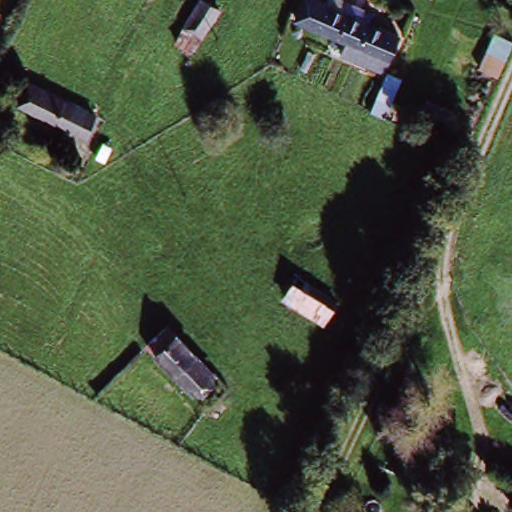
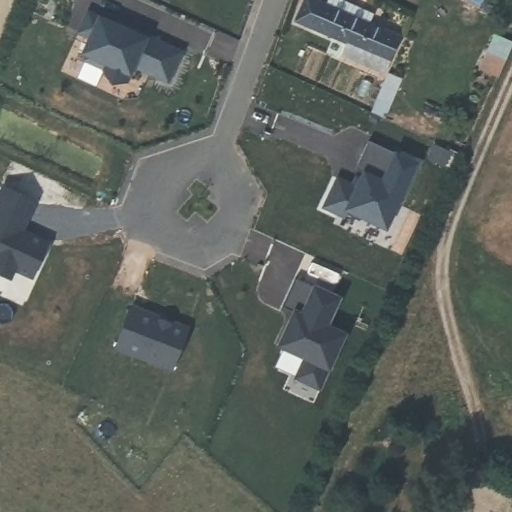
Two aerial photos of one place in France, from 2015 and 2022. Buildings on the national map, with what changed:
unchanged [(347,18),(351,10),(380,22),(383,15),(402,24),(393,48),(382,76),(355,65),(358,56),(334,47),(337,40),(311,30),(320,6),(347,18)]
new [(136,64),(129,79),(114,81),(106,69),(107,66),(87,57),(89,52),(85,51),(92,35),(80,30),(90,10),(132,29),(133,26),(184,50),(170,80),(136,64)]
demolished [(211,24),(192,52),(172,39),(191,11),(211,24)]
demolished [(18,85),(97,111),(90,137),(10,111),(18,85)]
new [(351,207),(348,214),(329,205),(342,176),(361,185),(367,172),(359,168),(373,139),(419,161),(389,225),(351,207)]
new [(475,163),(467,178),(442,166),(449,150),(475,163)]
new [(0,270),(0,194),(5,184),(37,199),(23,230),(32,234),(32,232),(49,240),(33,275),(15,266),(11,275),(0,270)]
new [(330,324),(348,332),(323,387),(299,376),(308,356),(281,344),(290,324),(297,310),(299,311),(285,304),(298,275),(342,296),(330,324)]
demolished [(295,291),(332,309),(325,325),(286,308),(295,291)]
new [(132,304),(148,310),(147,312),(170,321),(171,320),(189,327),(173,369),(116,346),(132,304)]
demolished [(193,385),(150,345),(167,327),(210,367),(193,385)]

